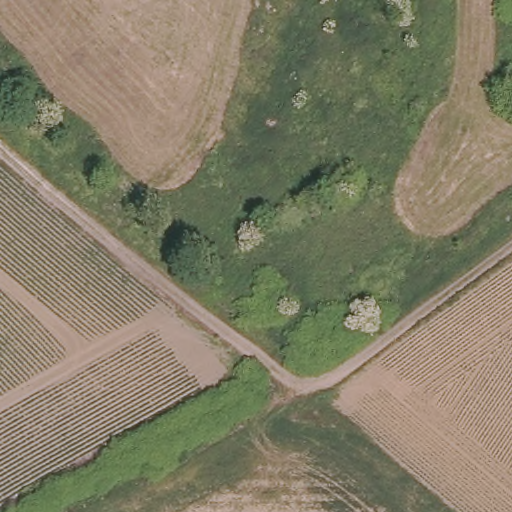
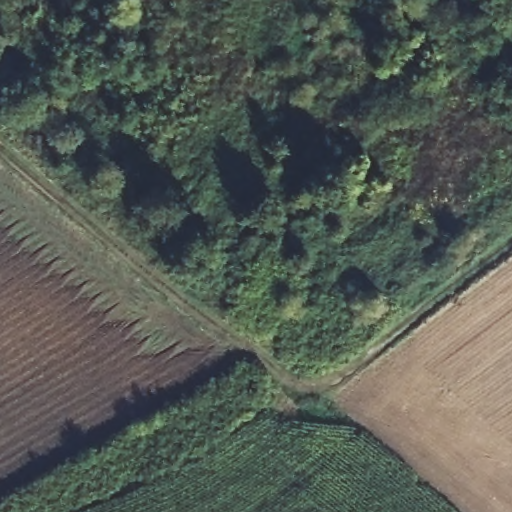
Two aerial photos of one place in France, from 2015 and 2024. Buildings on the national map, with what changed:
unchanged [(356,303),(366,297),(375,308),(364,314),(356,303)]

